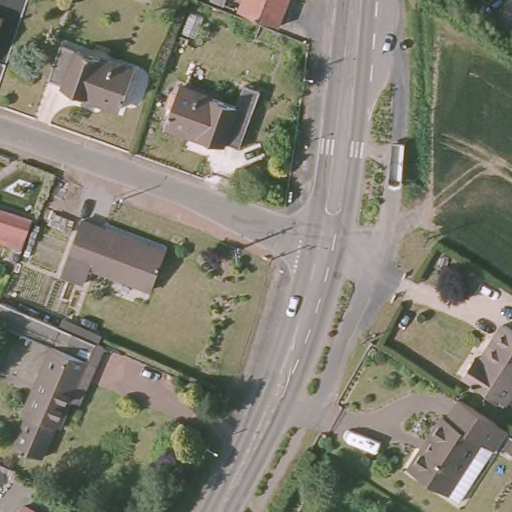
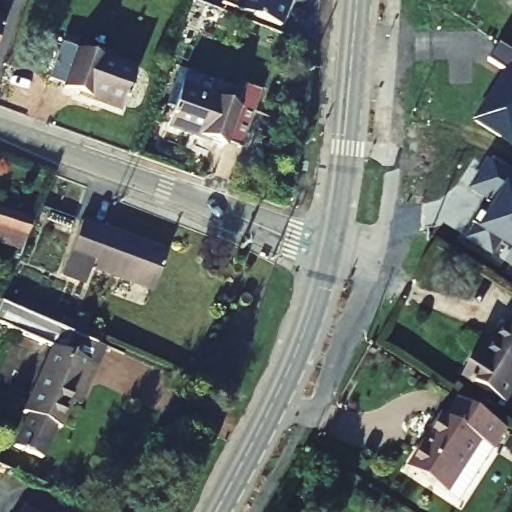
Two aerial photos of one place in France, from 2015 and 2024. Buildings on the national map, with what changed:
demolished [(9,0),(21,0),(20,4),(9,0)]
unchanged [(227,0),(224,9),(212,5),(214,0),(227,0)]
unchanged [(240,15),(245,0),(289,0),(277,31),(240,15)]
new [(512,55),(512,149),(472,124),(506,74),(489,64),(499,47),(512,55)]
unchanged [(142,80),(128,116),(73,96),(72,94),(57,88),(69,53),(142,80)]
unchanged [(233,110),(237,97),(254,102),(237,148),(222,143),(220,148),(165,127),(177,91),(233,110)]
new [(512,178),(512,255),(499,248),(492,261),(465,242),(474,228),(479,231),(492,208),(467,193),(487,162),(512,178)]
unchanged [(27,244),(0,235),(0,212),(32,219),(27,244)]
unchanged [(87,267),(82,283),(58,275),(79,220),(162,251),(149,289),(87,267)]
unchanged [(281,245),(277,254),(269,250),(272,241),(281,245)]
unchanged [(53,428),(49,426),(35,460),(7,448),(22,414),(17,411),(44,344),(0,326),(0,303),(99,346),(84,379),(72,405),(64,401),(53,428)]
unchanged [(506,406),(462,379),(474,361),(479,363),(504,325),(512,330),(512,397),(506,406)]
unchanged [(449,500),(401,470),(447,397),(496,428),(449,500)]

